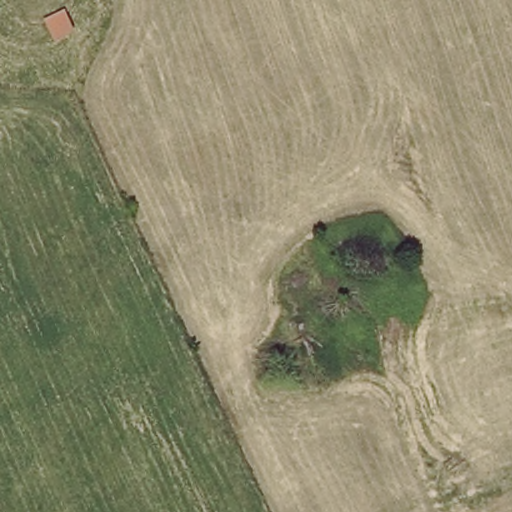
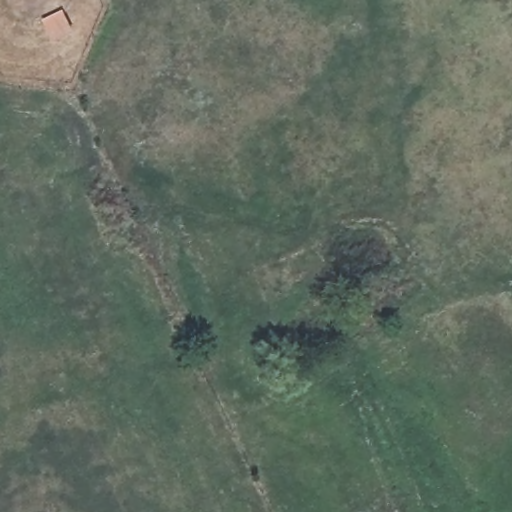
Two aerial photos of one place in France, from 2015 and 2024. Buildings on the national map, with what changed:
[]

